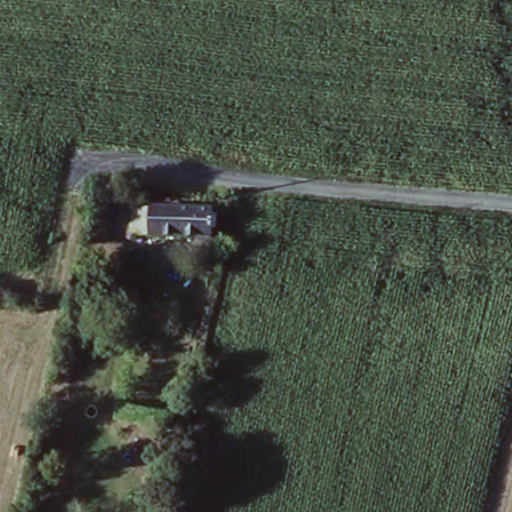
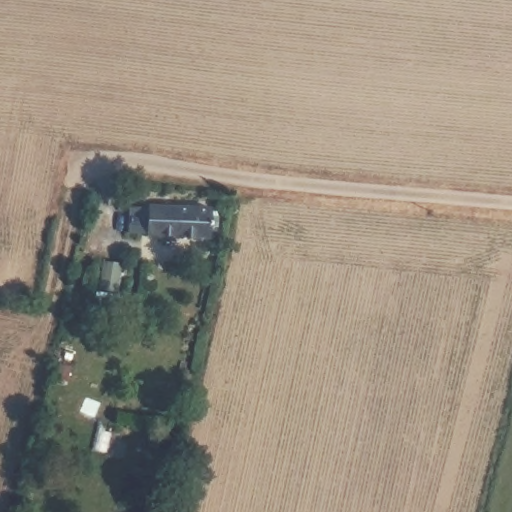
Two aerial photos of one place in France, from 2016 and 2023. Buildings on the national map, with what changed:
unchanged [(213,209),(211,238),(130,236),(130,207),(213,209)]

